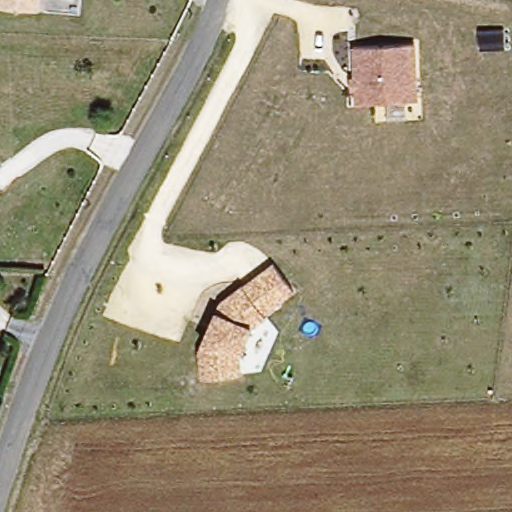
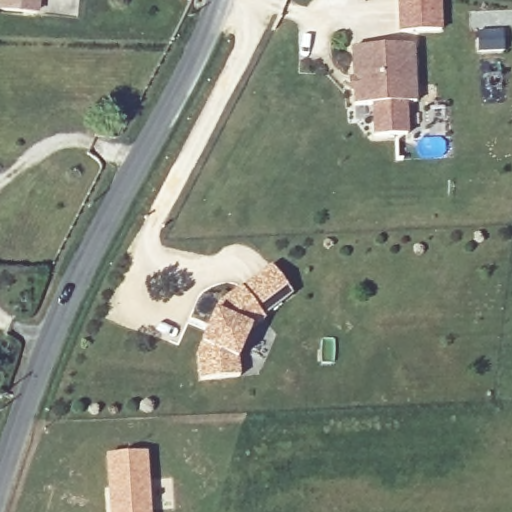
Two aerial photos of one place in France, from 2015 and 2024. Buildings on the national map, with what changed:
unchanged [(0,13),(0,0),(33,0),(31,16),(0,13)]
new [(399,31),(398,0),(442,0),(445,28),(399,31)]
new [(506,28),(507,49),(480,51),(479,29),(506,28)]
unchanged [(413,45),(417,103),(355,106),(352,49),(413,45)]
unchanged [(234,379),(196,383),(195,354),(215,306),(237,290),(239,290),(268,267),(289,295),(258,319),(261,321),(246,332),(234,360),(234,379)]
new [(145,480),(170,478),(172,508),(147,511),(148,512),(109,512),(105,456),(143,453),(145,480)]

